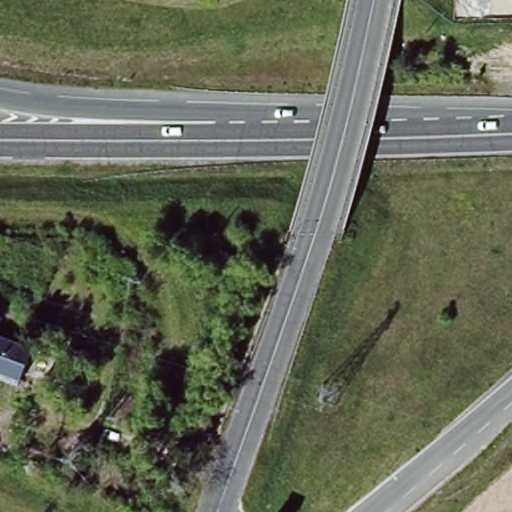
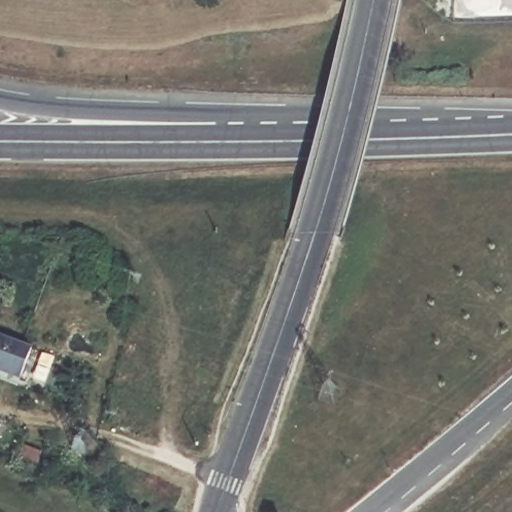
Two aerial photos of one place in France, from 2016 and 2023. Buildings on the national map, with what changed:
unchanged [(29,352),(16,382),(0,376),(0,340),(29,352)]
unchanged [(12,439),(3,466),(0,464),(0,434),(12,439)]

